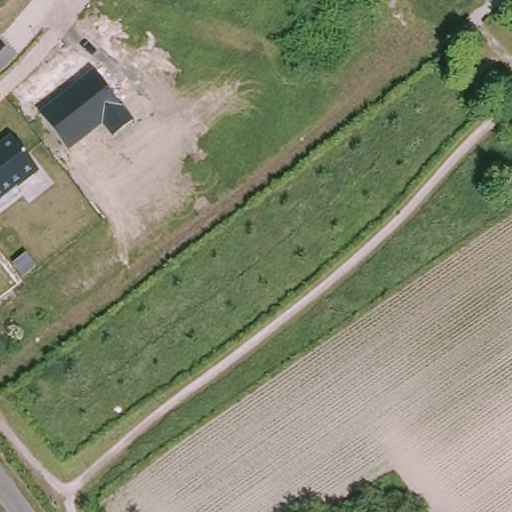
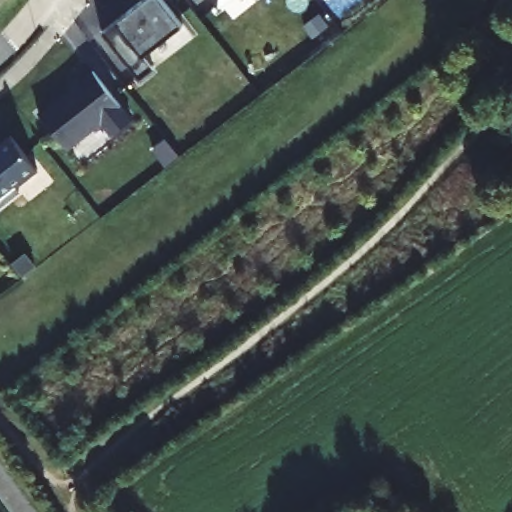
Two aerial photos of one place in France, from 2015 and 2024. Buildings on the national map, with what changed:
new [(143,54),(153,67),(139,79),(101,31),(139,0),(164,0),(182,24),(143,54)]
new [(218,0),(221,0),(219,2),(218,0)]
unchanged [(69,150),(40,112),(94,69),(134,120),(113,137),(102,124),(69,150)]
unchanged [(40,171),(17,188),(20,193),(0,210),(0,143),(12,134),(40,171)]

